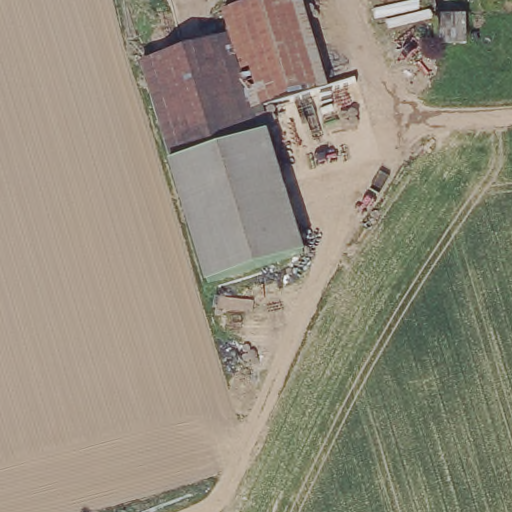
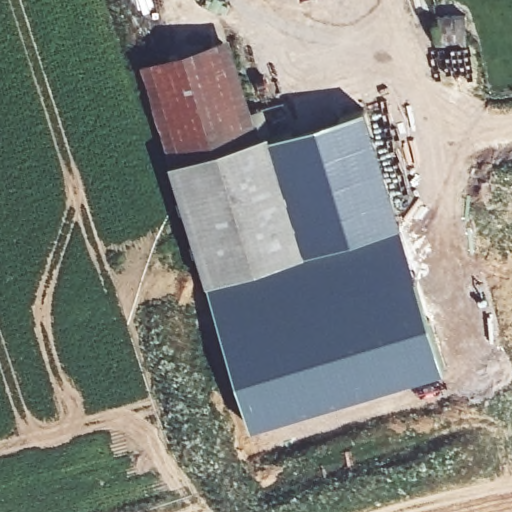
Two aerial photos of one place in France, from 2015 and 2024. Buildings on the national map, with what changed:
unchanged [(230,15),(279,0),(306,0),(333,83),(258,105),(235,30),(230,15)]
unchanged [(465,21),(467,44),(437,42),(437,19),(465,21)]
unchanged [(235,30),(258,105),(263,125),(265,129),(175,156),(145,57),(235,30)]
unchanged [(333,83),(340,102),(263,125),(258,105),(333,83)]
new [(365,108),(400,224),(443,371),(252,428),(210,283),(308,255),(267,136),(365,108)]
unchanged [(175,156),(265,129),(308,255),(210,283),(175,156)]

